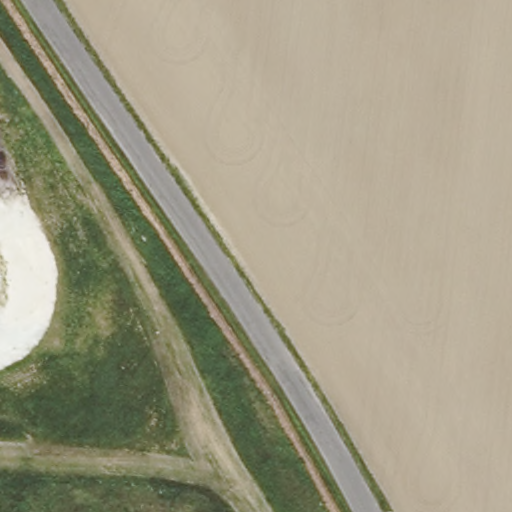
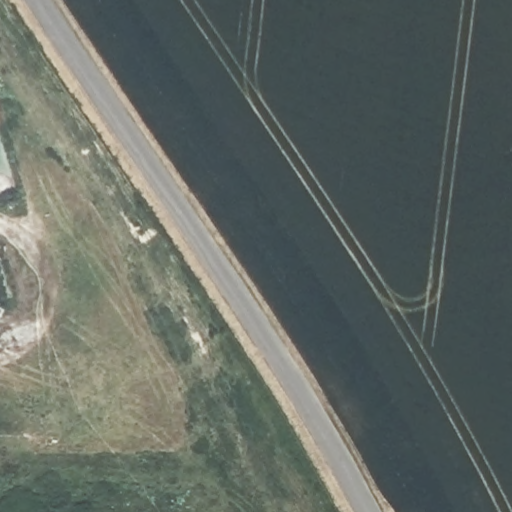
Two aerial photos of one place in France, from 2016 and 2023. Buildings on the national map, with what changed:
[]

